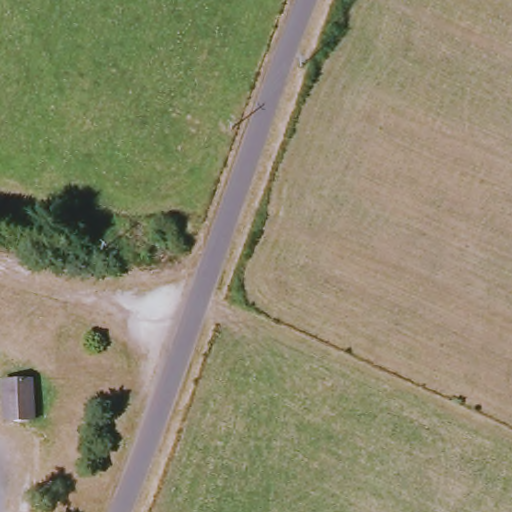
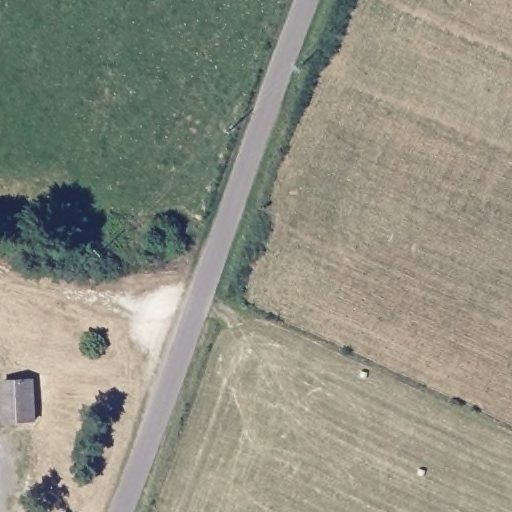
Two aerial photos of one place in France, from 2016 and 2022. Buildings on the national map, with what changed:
unchanged [(37,379),(39,420),(17,421),(6,422),(4,380),(15,380),(37,379)]

